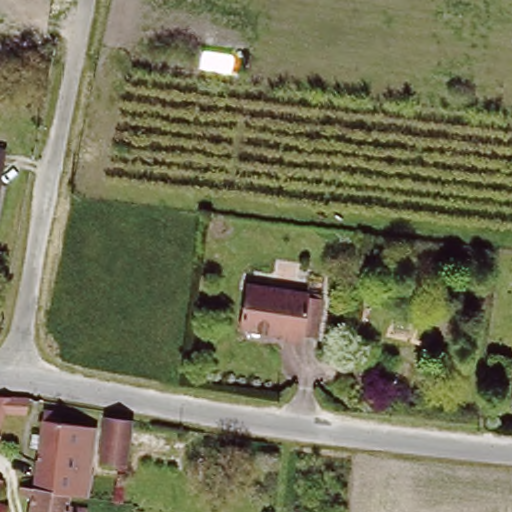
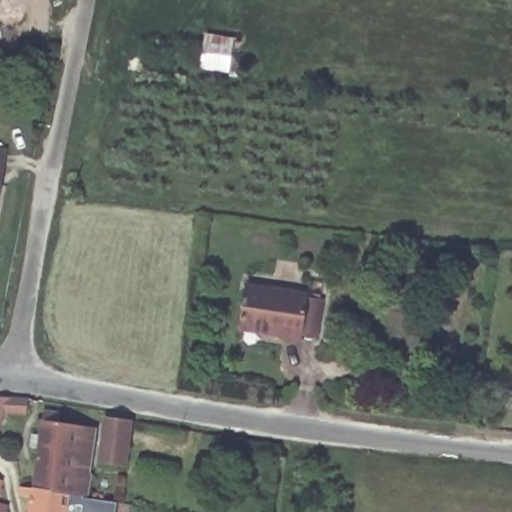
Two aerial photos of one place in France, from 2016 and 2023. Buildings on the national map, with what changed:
unchanged [(0,164),(0,147),(3,147),(0,164)]
unchanged [(301,337),(300,345),(281,341),(281,336),(240,330),(248,287),(307,295),(306,299),(322,302),(320,318),(317,339),(301,337)]
unchanged [(23,394),(19,410),(0,409),(0,393),(23,394)]
unchanged [(31,483),(38,443),(28,442),(30,429),(39,430),(43,405),(60,408),(59,417),(95,424),(88,469),(90,470),(88,494),(69,491),(31,483)]
unchanged [(125,461),(99,457),(104,413),(130,417),(125,461)]
unchanged [(1,476),(0,479),(0,476),(1,476)]
unchanged [(18,482),(31,483),(69,491),(68,502),(86,505),(85,512),(25,512),(15,510),(18,482)]
unchanged [(7,501),(3,512),(0,512),(0,499),(7,501)]

